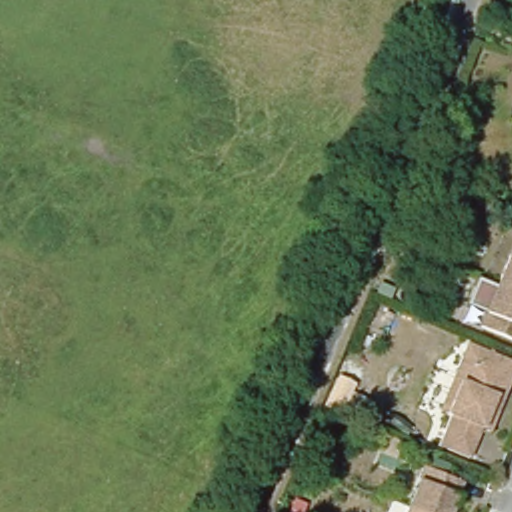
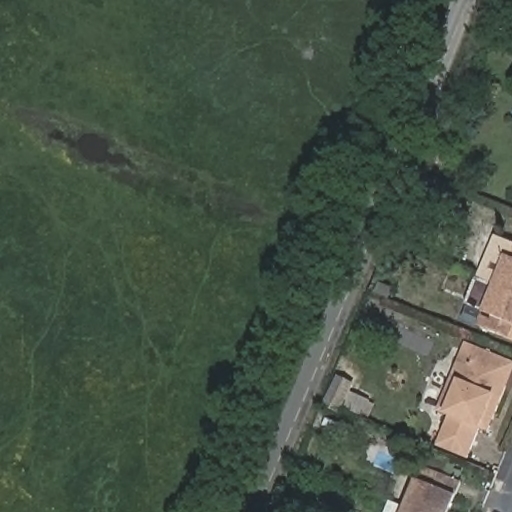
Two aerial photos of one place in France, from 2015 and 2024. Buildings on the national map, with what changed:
unchanged [(473,326),(491,285),(508,244),(512,245),(512,342),(473,326)]
unchanged [(467,447),(437,435),(449,406),(446,404),(437,401),(450,370),(465,333),(509,352),(512,353),(512,363),(507,377),(493,409),(489,421),(480,417),(467,447)]
unchanged [(404,498),(404,497),(421,456),(461,472),(446,507),(445,512),(398,512),(404,498)]

